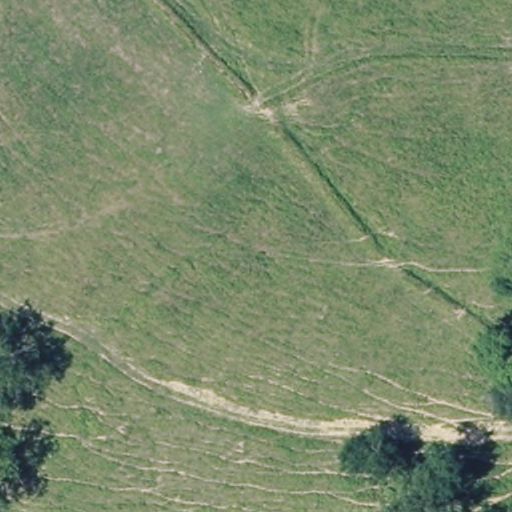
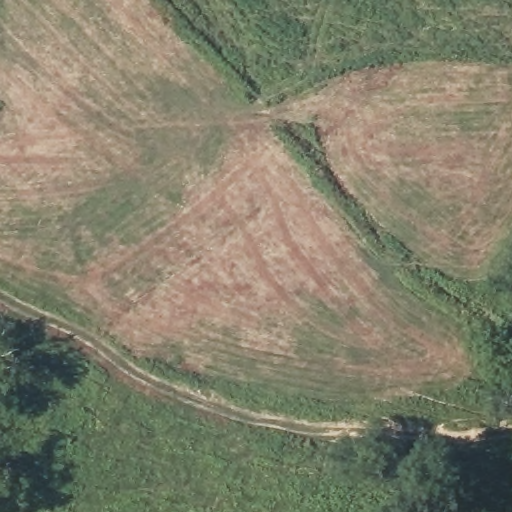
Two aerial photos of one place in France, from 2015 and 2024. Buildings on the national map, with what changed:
[]

